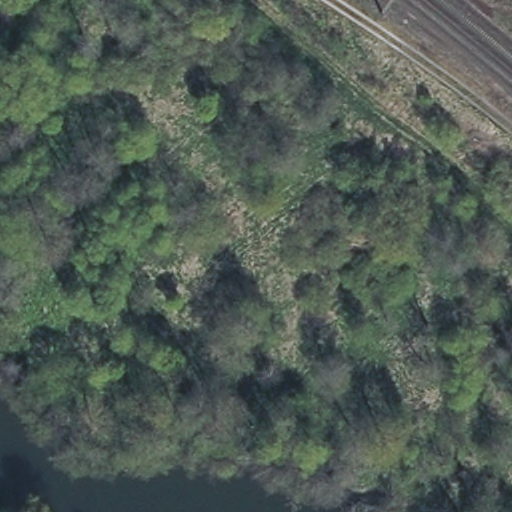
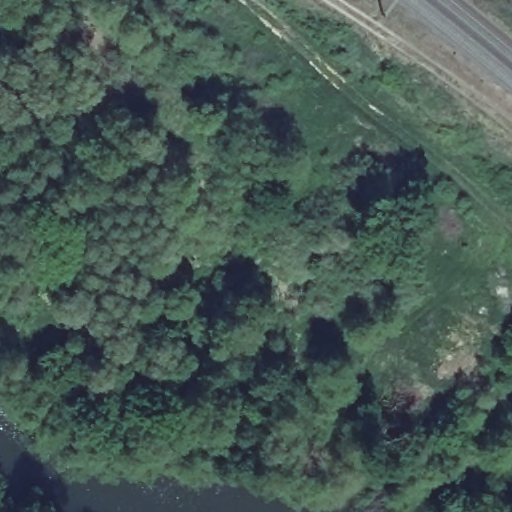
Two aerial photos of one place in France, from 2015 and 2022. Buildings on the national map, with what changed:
[]

